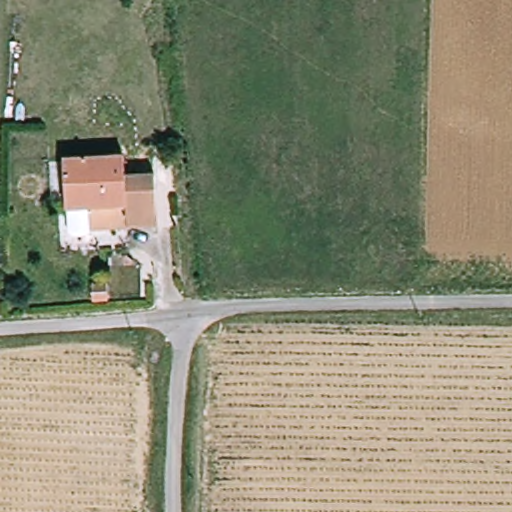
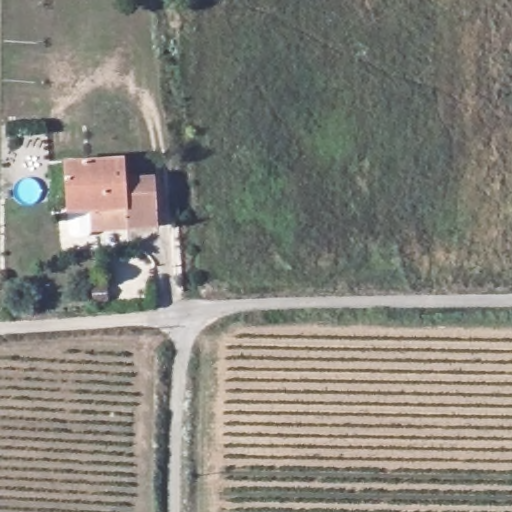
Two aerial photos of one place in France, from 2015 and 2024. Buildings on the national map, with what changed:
unchanged [(72,203),(70,162),(128,159),(130,182),(160,180),(160,229),(133,229),(132,209),(102,211),(73,212),(72,203)]

